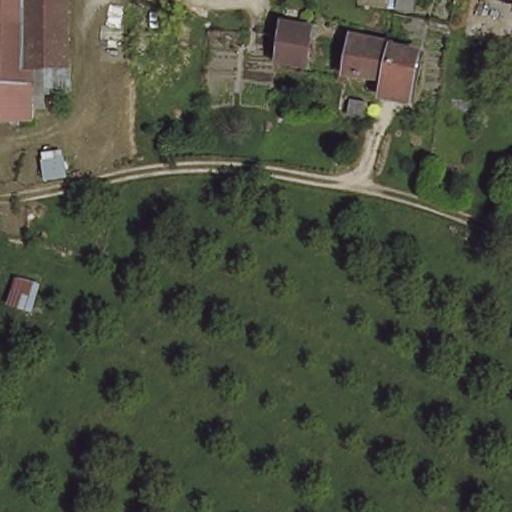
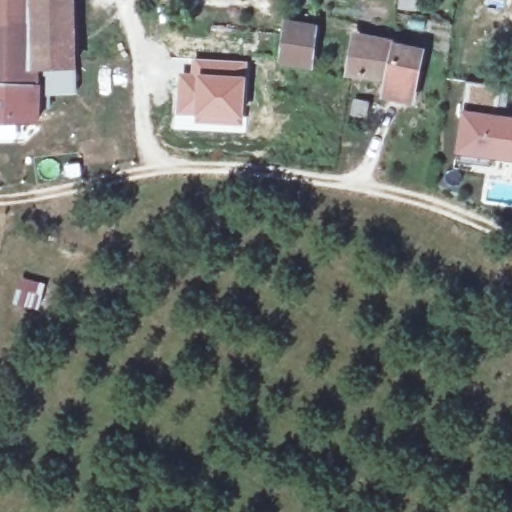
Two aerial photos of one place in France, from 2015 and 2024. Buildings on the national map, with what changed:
unchanged [(32,117),(0,117),(0,0),(29,0),(31,60),(67,60),(68,92),(45,92),(45,106),(32,106),(32,117)]
unchanged [(67,60),(31,60),(29,0),(67,0),(67,60)]
demolished [(393,7),(362,2),(362,0),(394,0),(393,7)]
unchanged [(307,61),(278,55),(282,21),(312,27),(307,61)]
unchanged [(422,46),(411,101),(377,96),(378,82),(342,74),(349,30),(422,46)]
new [(179,72),(190,72),(192,57),(248,61),(244,128),(192,125),(192,119),(177,117),(179,72)]
new [(467,82),(510,89),(507,114),(462,107),(467,82)]
new [(455,157),(462,107),(507,114),(512,114),(512,162),(455,157)]

